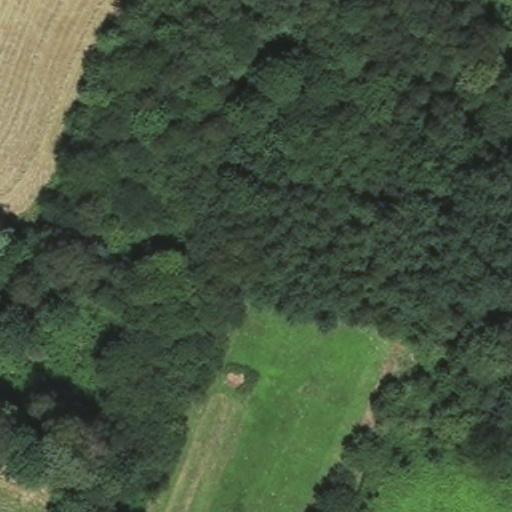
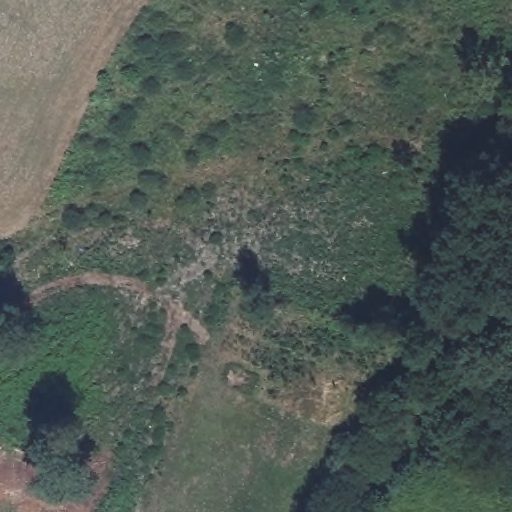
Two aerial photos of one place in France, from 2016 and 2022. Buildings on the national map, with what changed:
unchanged [(239,384),(229,382),(233,362),(257,367),(250,387),(239,384)]

